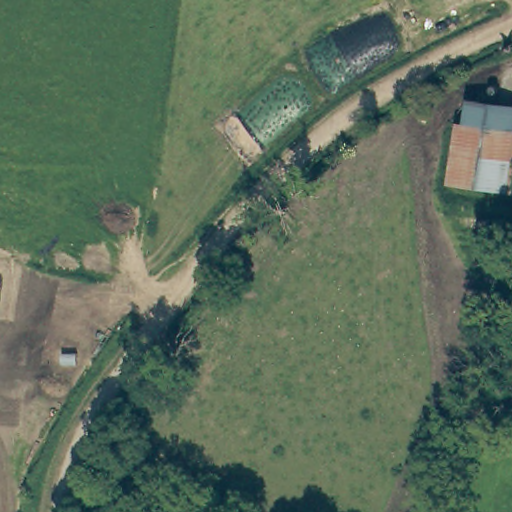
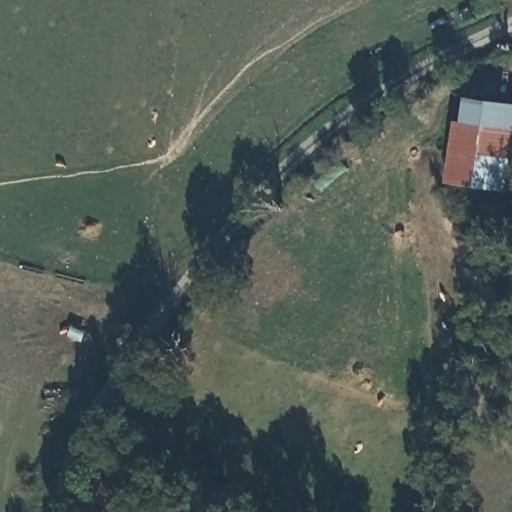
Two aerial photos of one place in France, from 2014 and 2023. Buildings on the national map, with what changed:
unchanged [(444,178),(454,120),(462,121),(465,95),(512,102),(512,188),(444,178)]

